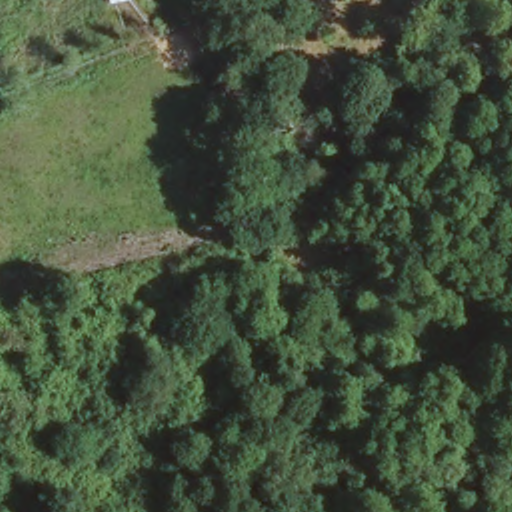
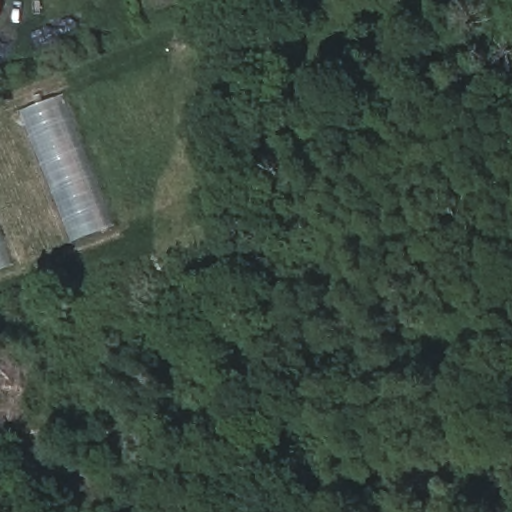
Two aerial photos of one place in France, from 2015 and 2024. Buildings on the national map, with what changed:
new [(4,0),(3,17),(0,17),(0,0),(4,0)]
new [(109,227),(70,242),(22,111),(61,97),(109,227)]
new [(10,267),(0,270),(0,238),(10,267)]

